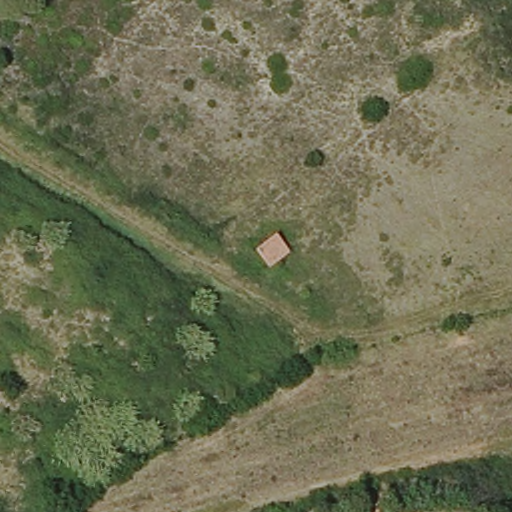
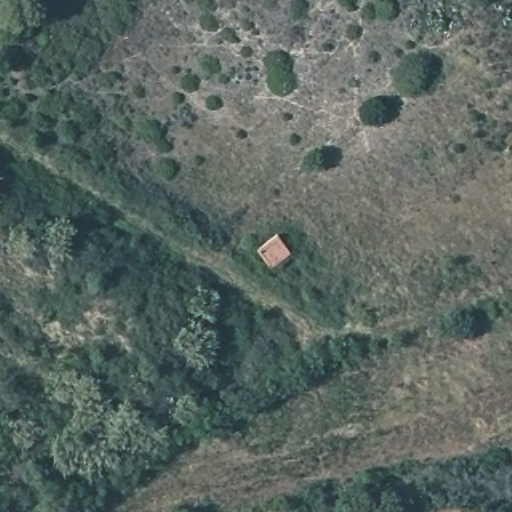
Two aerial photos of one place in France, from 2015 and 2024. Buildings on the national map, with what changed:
unchanged [(276,261),(261,244),(284,229),(297,247),(276,261)]

